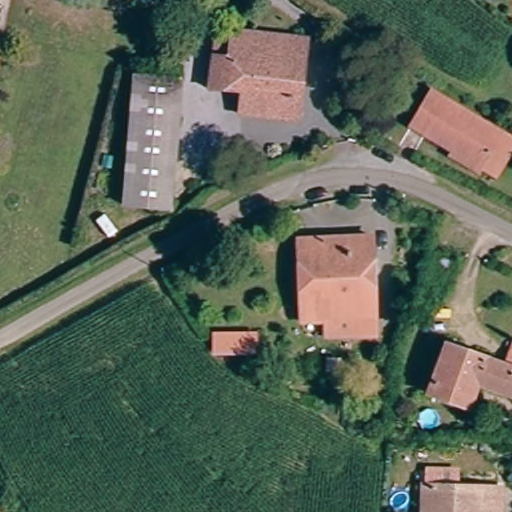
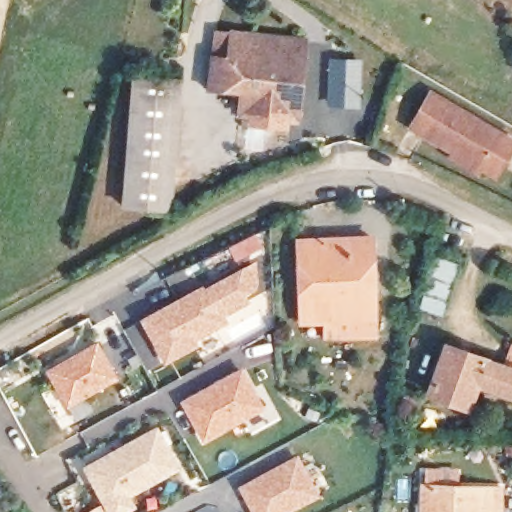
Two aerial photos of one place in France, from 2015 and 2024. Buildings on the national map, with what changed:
unchanged [(300,115),(242,112),(244,93),(212,90),(215,61),(217,35),(233,35),(305,40),(300,115)]
new [(329,57),(362,59),(360,108),(326,106),(329,57)]
unchanged [(182,82),(171,215),(124,212),(138,79),(182,82)]
unchanged [(450,159),(454,150),(410,129),(425,100),(495,135),(510,142),(495,171),(481,164),(477,172),(450,159)]
unchanged [(306,322),(301,241),(375,237),(379,335),(360,335),(359,320),(306,322)]
new [(205,288),(257,260),(258,288),(245,295),(250,303),(226,316),(230,322),(196,341),(199,347),(166,365),(140,320),(203,285),(205,288)]
demolished [(252,299),(253,315),(232,316),(213,317),(212,301),(252,299)]
new [(119,380),(69,408),(46,370),(97,341),(119,380)]
unchanged [(463,410),(425,401),(440,354),(512,371),(512,393),(510,400),(468,390),(463,410)]
new [(266,410),(204,444),(180,404),(242,367),(266,410)]
new [(183,470),(132,496),(137,508),(131,512),(86,512),(103,503),(82,466),(158,426),(183,470)]
new [(321,497),(294,512),(253,512),(240,486),(298,455),(321,497)]
unchanged [(497,491),(497,512),(426,512),(426,492),(497,491)]

